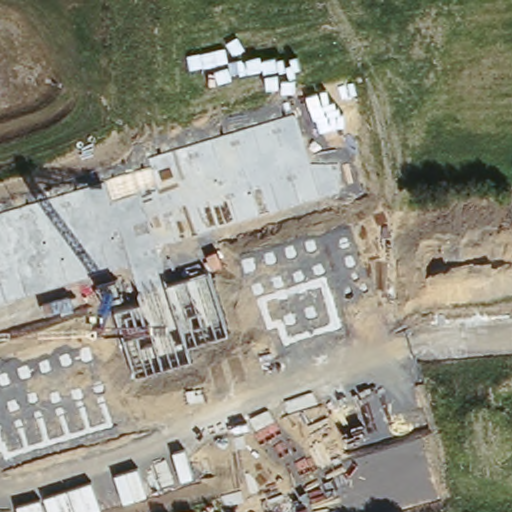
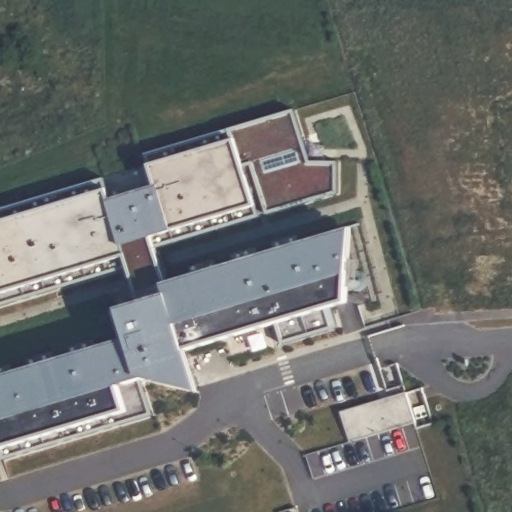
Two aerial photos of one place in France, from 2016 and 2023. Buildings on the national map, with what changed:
new [(152,251),(155,261),(166,288),(357,232),(364,278),(353,280),(351,306),(330,312),(333,330),(285,345),(277,325),(186,353),(197,391),(140,380),(149,414),(5,459),(0,441),(0,378),(124,340),(115,314),(143,304),(130,270),(0,309),(0,215),(105,181),(114,205),(162,190),(152,158),(292,115),(310,166),(335,169),(336,196),(152,251)]
new [(395,398),(409,395),(417,424),(353,442),(344,413),(382,402),(395,398)]

